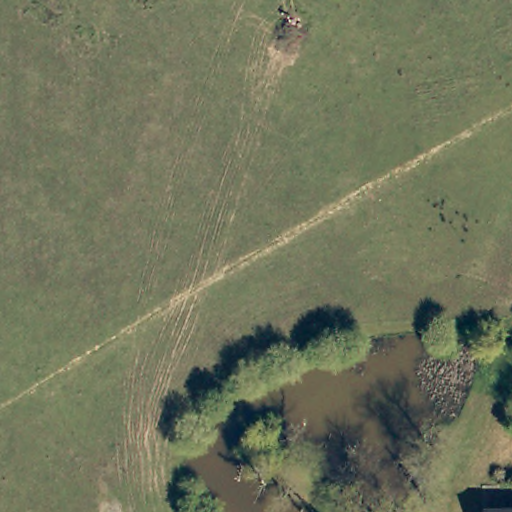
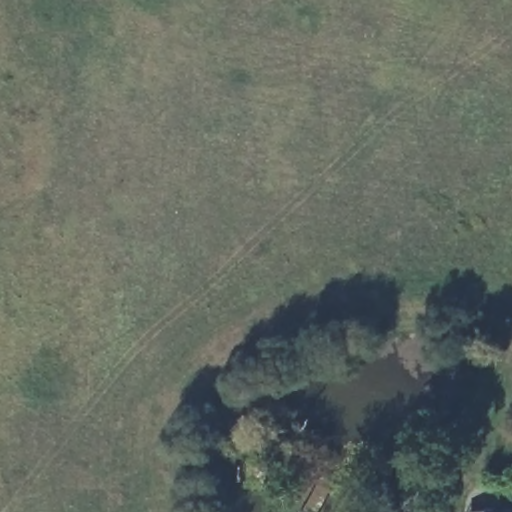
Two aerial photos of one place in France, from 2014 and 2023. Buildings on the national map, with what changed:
unchanged [(512,511),(512,512),(488,512),(512,511)]

